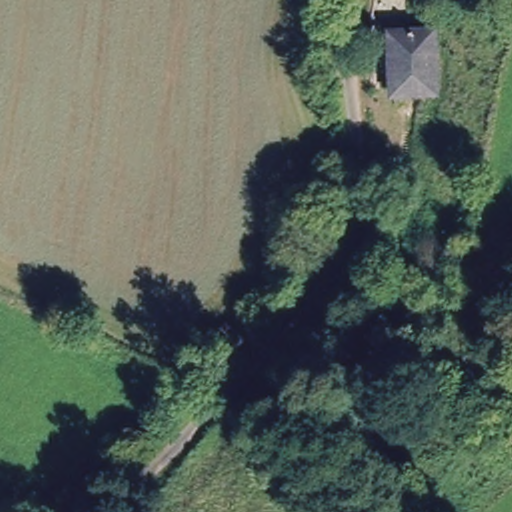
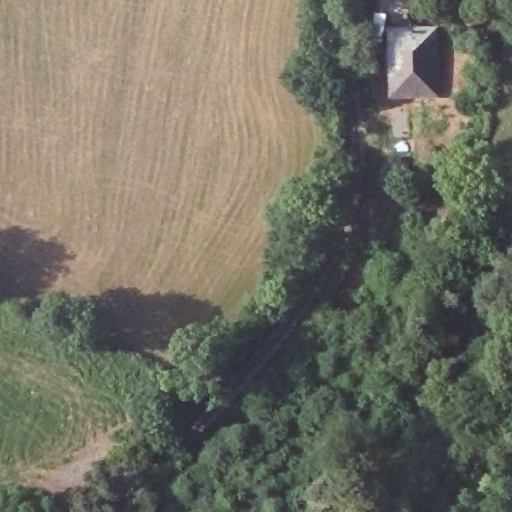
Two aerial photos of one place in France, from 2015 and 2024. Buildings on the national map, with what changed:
unchanged [(436,17),(434,95),(388,95),(388,18),(436,17)]

